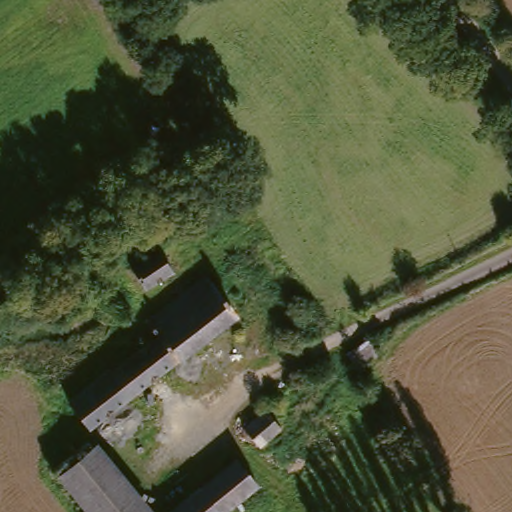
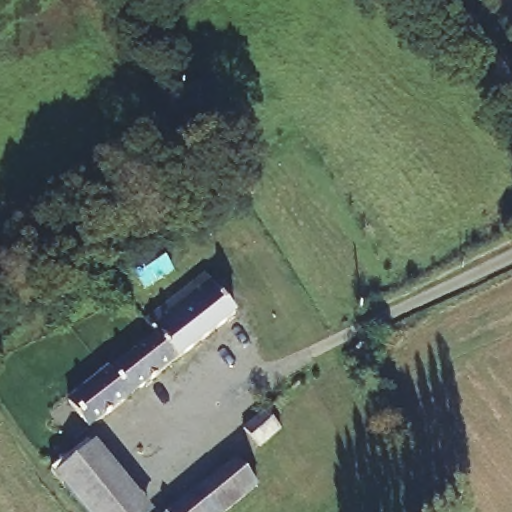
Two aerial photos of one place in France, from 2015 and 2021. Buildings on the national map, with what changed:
unchanged [(146,290),(131,268),(162,250),(175,272),(146,290)]
unchanged [(206,276),(237,315),(91,429),(69,402),(110,369),(112,372),(157,337),(146,322),(206,276)]
unchanged [(350,366),(347,342),(378,341),(382,364),(350,366)]
unchanged [(268,411),(283,429),(260,448),(245,430),(268,411)]
unchanged [(157,512),(156,512),(94,512),(57,467),(92,438),(157,512)]
unchanged [(238,462),(258,487),(256,490),(228,512),(175,512),(238,462)]

